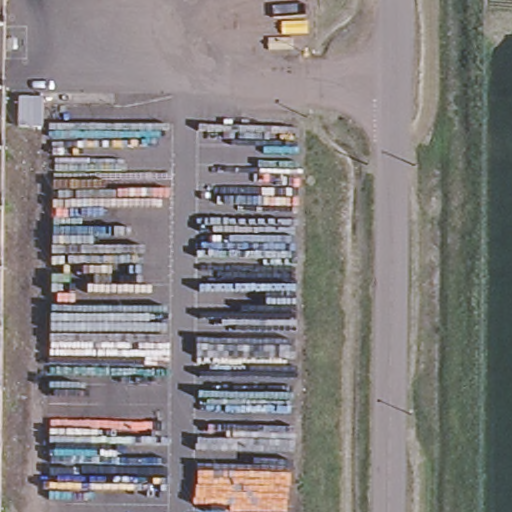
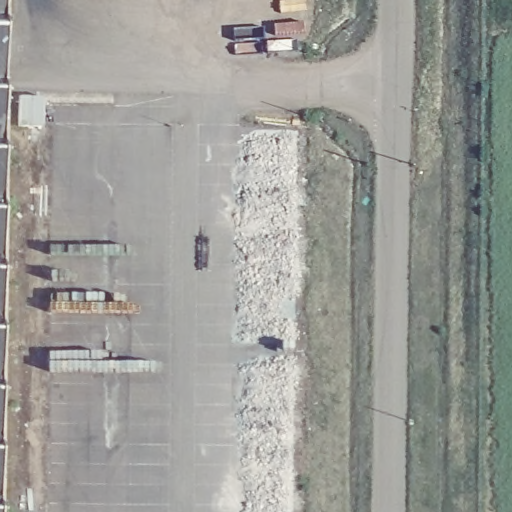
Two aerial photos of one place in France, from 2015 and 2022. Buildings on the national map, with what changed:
unchanged [(1,512),(0,512),(0,0),(6,0),(5,102),(1,512)]
unchanged [(5,102),(55,103),(51,512),(1,512),(5,102)]

